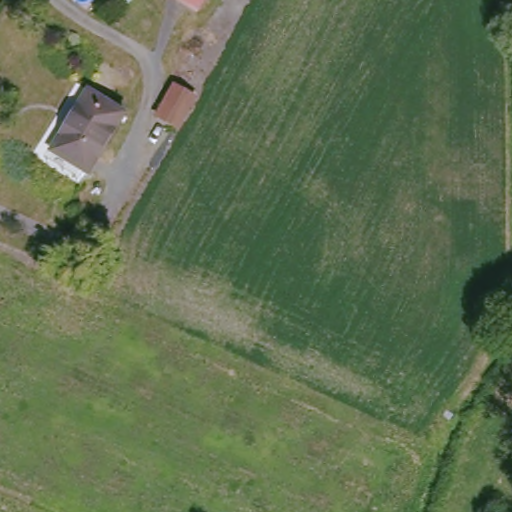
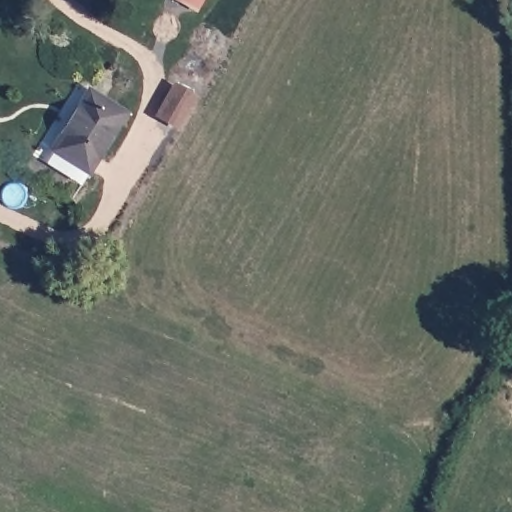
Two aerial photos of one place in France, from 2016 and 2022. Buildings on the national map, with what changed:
unchanged [(193,13),(175,0),(201,0),(193,13)]
unchanged [(196,87),(180,118),(160,106),(178,77),(196,87)]
unchanged [(123,111),(86,170),(51,148),(85,88),(123,111)]

